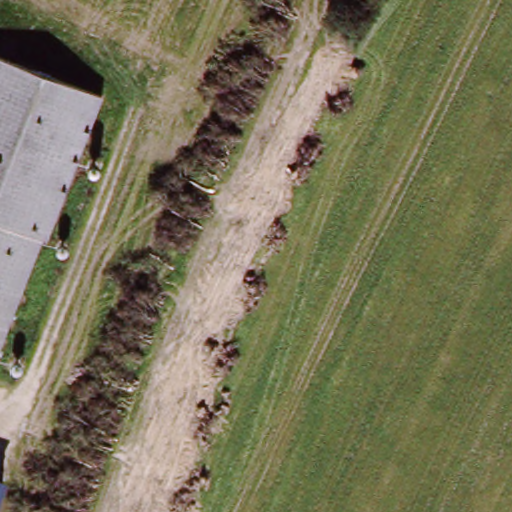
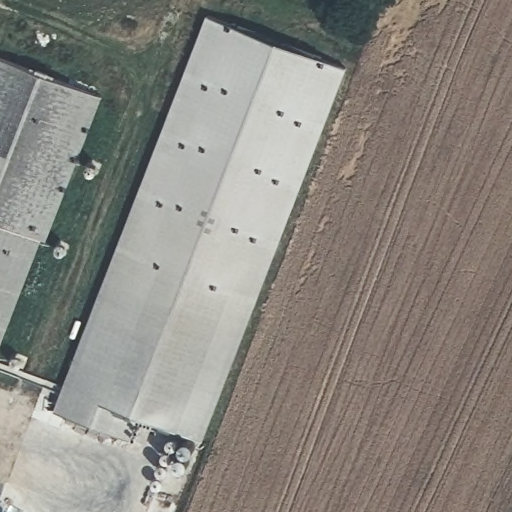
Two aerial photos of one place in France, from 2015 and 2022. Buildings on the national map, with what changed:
new [(347,68),(203,440),(139,417),(129,438),(55,408),(207,13),(347,68)]
unchanged [(101,96),(45,240),(40,238),(0,344),(0,58),(101,96)]

